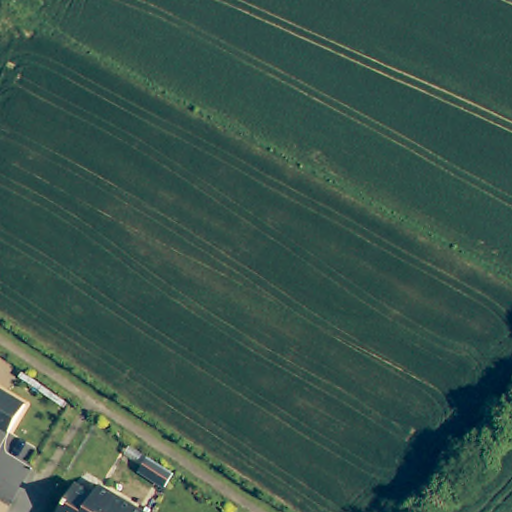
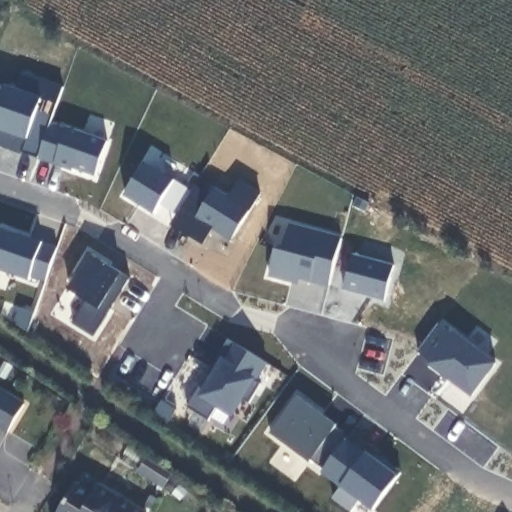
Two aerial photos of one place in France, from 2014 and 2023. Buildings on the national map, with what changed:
new [(50,119),(66,124),(67,122),(107,136),(95,171),(73,163),(72,166),(37,154),(50,119)]
new [(162,198),(155,210),(125,192),(146,159),(192,187),(179,208),(162,198)]
new [(195,182),(211,192),(215,185),(230,194),(241,178),(261,190),(232,236),(213,224),(202,240),(171,220),(195,182)]
new [(278,246),(286,242),(292,222),(344,236),(331,283),(306,276),(298,280),(271,273),(278,246)]
new [(30,272),(29,276),(0,266),(0,232),(3,224),(57,244),(45,277),(30,272)]
new [(93,333),(72,320),(87,298),(70,287),(79,273),(76,270),(89,249),(130,274),(93,333)]
new [(339,255),(353,259),(355,252),(396,263),(386,299),(347,288),(345,293),(330,288),(339,255)]
new [(455,332),(456,330),(498,362),(474,394),(432,362),(433,360),(420,350),(441,322),(455,332)]
new [(267,360),(256,378),(262,381),(250,401),(242,396),(232,411),(218,403),(209,418),(187,404),(200,384),(207,389),(216,377),(207,372),(229,337),(267,360)]
unchanged [(27,403),(11,431),(0,425),(0,387),(27,403)]
new [(325,467),(312,458),(311,461),(271,431),(298,394),(338,424),(351,434),(325,467)]
new [(347,439),(366,454),(367,452),(376,458),(378,454),(402,472),(375,508),(324,469),(347,439)]
unchanged [(97,494),(103,485),(147,512),(61,512),(78,483),(97,494)]

